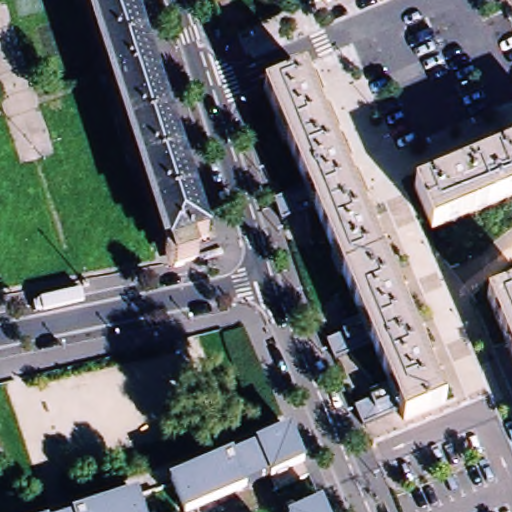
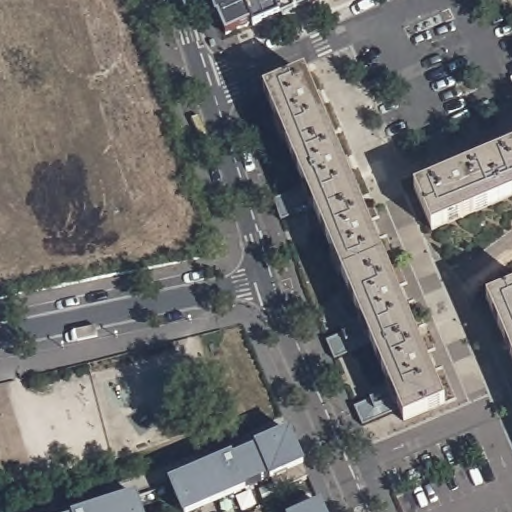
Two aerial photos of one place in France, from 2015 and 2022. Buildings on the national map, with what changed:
demolished [(137,13),(149,52),(144,54),(156,90),(161,88),(211,245),(198,250),(201,260),(203,263),(186,268),(181,270),(93,0),(133,0),(137,13)]
unchanged [(156,90),(144,54),(149,52),(153,65),(156,75),(161,88),(156,90)]
unchanged [(264,92),(306,74),(446,403),(404,421),(264,92)]
unchanged [(512,148),(512,197),(432,231),(415,189),(512,148)]
unchanged [(512,289),(512,359),(487,300),(512,289)]
unchanged [(281,495),(275,483),(274,482),(262,453),(261,451),(294,437),(308,469),(313,481),(281,495)]
unchanged [(236,461),(236,464),(262,453),(274,482),(249,492),(220,505),(219,504),(206,474),(236,461)]
unchanged [(219,504),(220,505),(221,506),(208,512),(185,512),(176,490),(174,487),(206,474),(219,504)]
unchanged [(136,495),(137,496),(142,512),(106,512),(104,506),(118,501),(136,495)]
unchanged [(323,512),(304,512),(320,505),(323,512)]
unchanged [(86,512),(104,506),(106,512),(86,512)]

